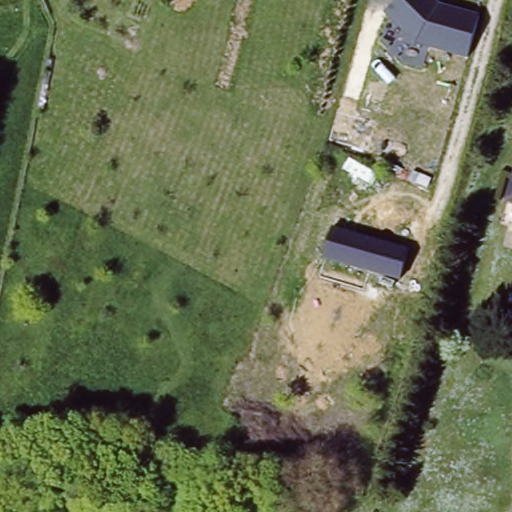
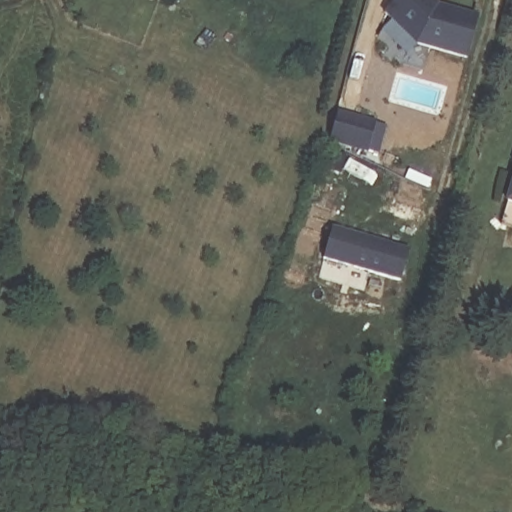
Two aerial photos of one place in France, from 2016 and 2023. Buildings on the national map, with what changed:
unchanged [(470,57),(417,42),(384,10),(394,0),(439,0),(444,4),(480,14),(470,57)]
new [(375,121),(387,124),(379,154),(367,151),(329,141),(337,108),(376,118),(375,121)]
unchanged [(510,192),(512,183),(512,193),(510,192)]
unchanged [(323,258),(332,226),(410,249),(400,280),(323,258)]

